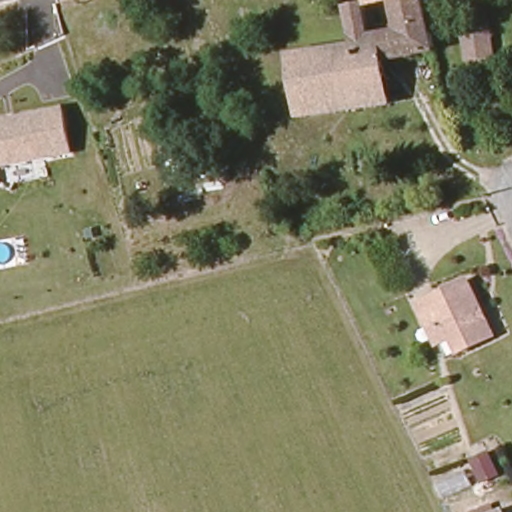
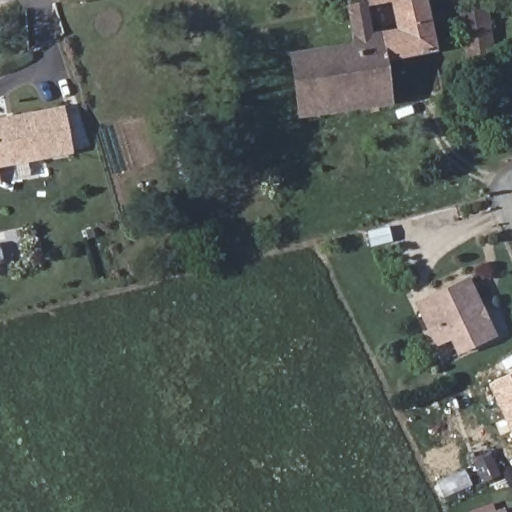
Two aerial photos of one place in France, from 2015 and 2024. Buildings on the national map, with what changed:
unchanged [(360,46),(353,12),(324,18),(321,0),(351,0),(352,8),(370,5),(375,33),(401,28),(402,28),(432,22),(438,51),(389,60),(395,104),(395,105),(304,117),(304,115),(297,57),(360,46)]
unchanged [(397,0),(397,1),(370,5),(370,0),(397,0)]
unchanged [(397,1),(397,0),(428,0),(432,22),(402,28),(397,1)]
unchanged [(461,16),(486,13),(495,73),(471,77),(461,16)]
unchanged [(0,167),(0,119),(63,106),(72,152),(0,167)]
unchanged [(426,321),(414,297),(464,273),(492,330),(456,347),(448,331),(434,337),(426,321)]
new [(512,372),(512,435),(487,384),(512,372)]
unchanged [(499,510),(500,512),(495,512),(499,510)]

